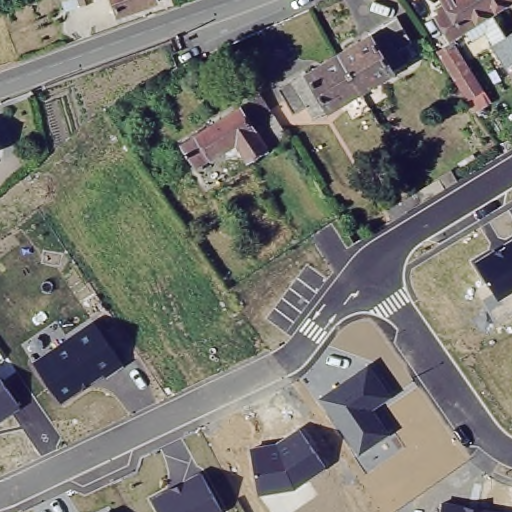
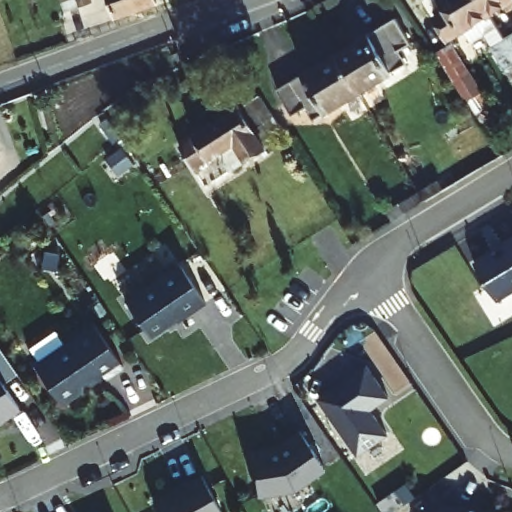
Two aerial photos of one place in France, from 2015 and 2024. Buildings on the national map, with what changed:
unchanged [(61,0),(74,0),(62,4),(61,0)]
unchanged [(120,18),(113,0),(154,0),(156,4),(120,18)]
unchanged [(443,10),(450,5),(447,0),(487,0),(495,14),(453,39),(441,19),(446,16),(443,10)]
unchanged [(487,0),(512,0),(512,4),(495,14),(487,0)]
unchanged [(368,39),(366,36),(382,28),(383,29),(397,21),(412,47),(400,55),(405,65),(359,94),(341,64),(337,58),(368,39)]
unchanged [(512,39),(512,74),(496,49),(510,40),(512,39)]
unchanged [(455,46),(486,94),(472,103),(441,54),(455,46)]
unchanged [(303,74),(305,75),(337,58),(341,64),(359,94),(315,120),(306,108),(292,116),(275,90),(303,74)]
unchanged [(243,108),(260,97),(282,132),(277,135),(269,120),(254,130),(266,150),(232,172),(220,155),(194,170),(180,148),(243,108)]
unchanged [(437,181),(445,192),(429,200),(426,203),(406,214),(400,204),(420,192),(437,181)]
unchanged [(497,301),(475,263),(512,240),(512,293),(497,301)]
new [(172,264),(198,303),(145,337),(121,299),(172,264)]
unchanged [(123,365),(106,377),(103,373),(60,403),(32,363),(93,322),(123,365)]
unchanged [(359,456),(320,398),(367,366),(391,398),(373,411),(390,434),(359,456)]
unchanged [(0,421),(0,380),(20,409),(0,421)]
unchanged [(326,469),(295,490),(257,496),(250,448),(276,444),(299,429),(326,469)]
unchanged [(223,512),(159,512),(151,499),(201,473),(223,512)]
unchanged [(441,503),(499,512),(440,512),(441,503)]

